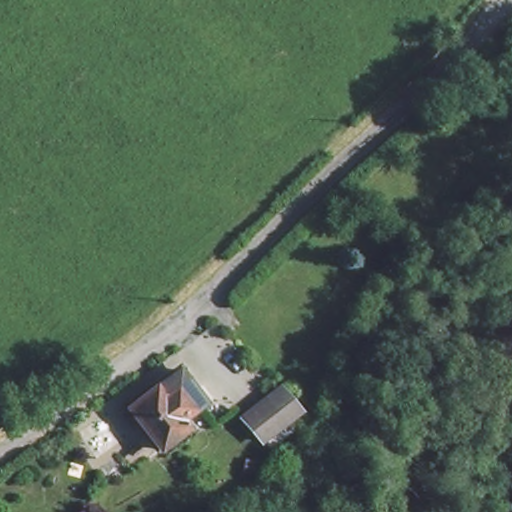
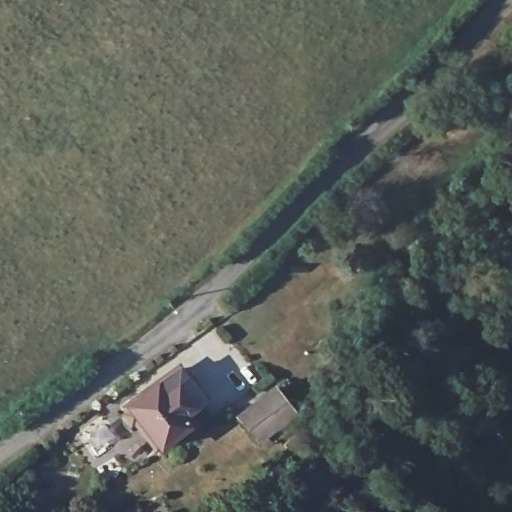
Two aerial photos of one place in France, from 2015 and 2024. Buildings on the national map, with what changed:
unchanged [(123,408),(132,401),(177,364),(205,395),(183,412),(191,422),(166,444),(144,417),(136,425),(123,408)]
unchanged [(271,440),(264,432),(258,437),(236,414),(274,382),(294,403),(279,417),(286,426),(271,440)]

